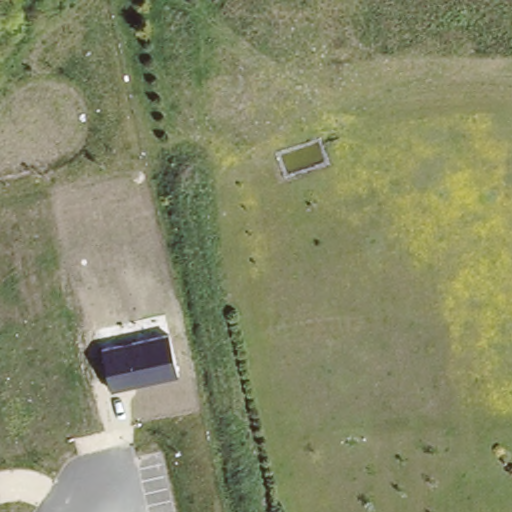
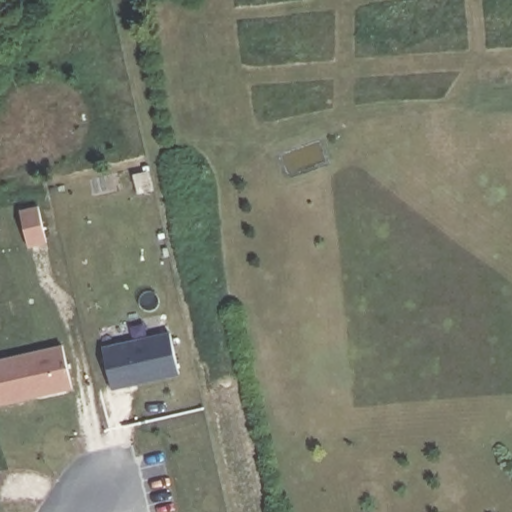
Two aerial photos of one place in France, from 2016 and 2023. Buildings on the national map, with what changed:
new [(35,209),(43,246),(25,250),(16,213),(35,209)]
unchanged [(103,346),(170,332),(177,375),(111,390),(103,346)]
new [(62,346),(71,388),(0,405),(0,360),(62,346)]

